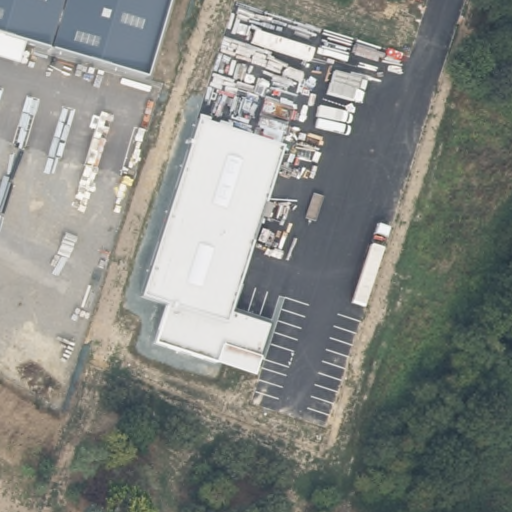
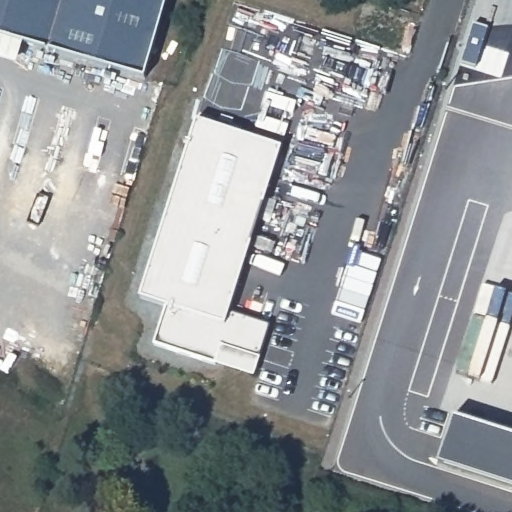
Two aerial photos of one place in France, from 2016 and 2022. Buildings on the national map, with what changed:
unchanged [(26,46),(19,66),(0,61),(0,0),(169,0),(146,78),(26,46)]
unchanged [(229,309),(269,322),(254,375),(154,341),(166,304),(139,295),(197,119),(280,146),(229,309)]
new [(512,433),(512,486),(436,462),(452,414),(512,433)]

